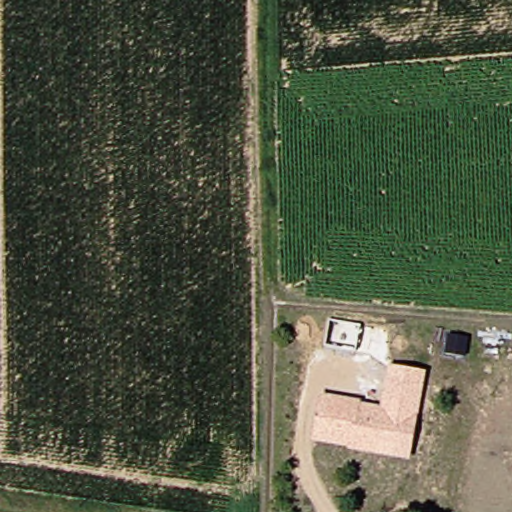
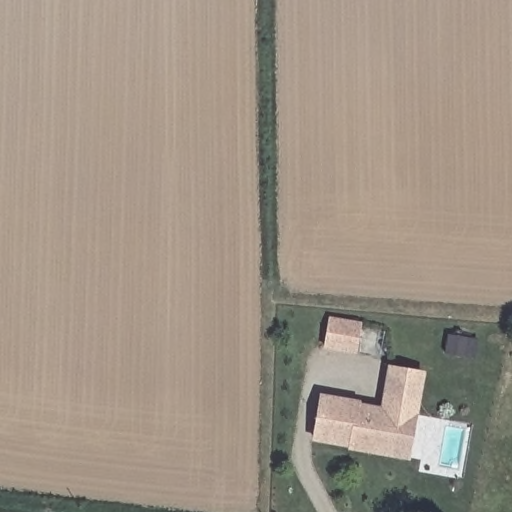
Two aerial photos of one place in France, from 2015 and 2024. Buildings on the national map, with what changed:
new [(330,318),(362,323),(358,350),(326,345),(330,318)]
unchanged [(409,461),(347,450),(347,448),(312,443),(320,395),(360,400),(359,403),(382,406),(388,366),(425,371),(409,461)]

